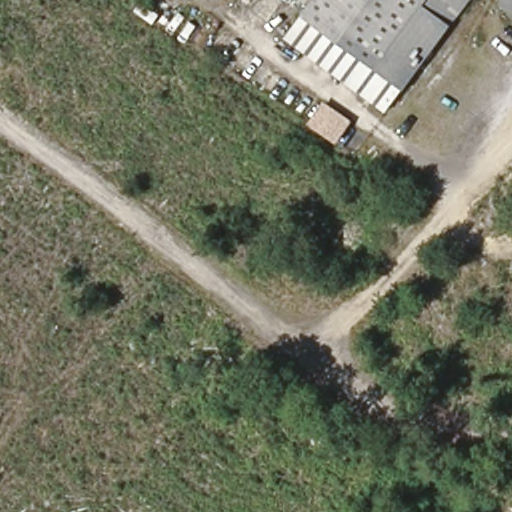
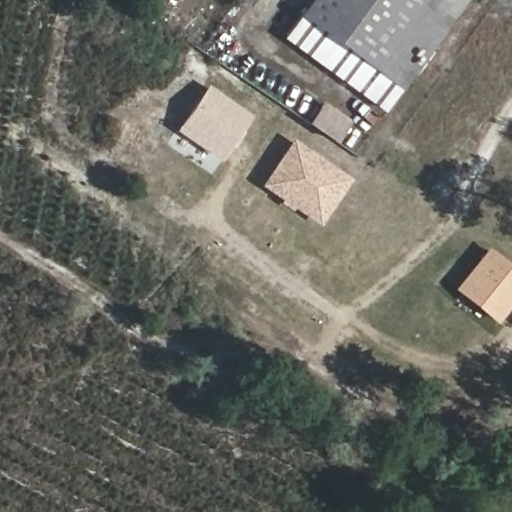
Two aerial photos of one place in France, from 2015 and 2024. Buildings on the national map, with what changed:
unchanged [(418,11),(445,31),(384,113),(286,43),(316,0),(427,0),(418,11)]
unchanged [(450,6),(441,0),(455,0),(450,6)]
new [(207,91),(247,119),(219,159),(179,131),(207,91)]
unchanged [(322,103),(351,123),(335,144),(308,124),(322,103)]
new [(293,146),(304,147),(352,179),(320,226),(262,187),(266,182),(293,146)]
new [(487,253),(512,272),(512,300),(496,322),(457,292),(487,253)]

